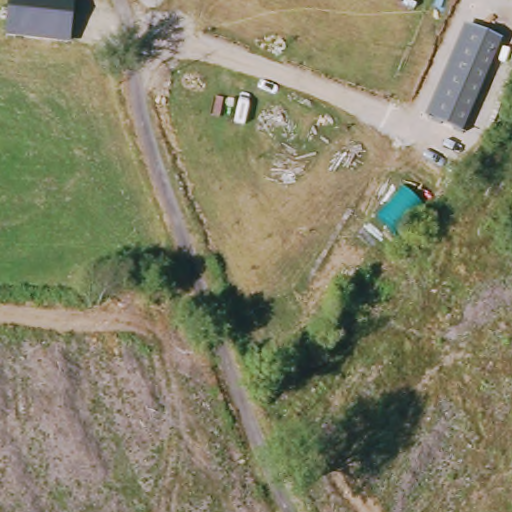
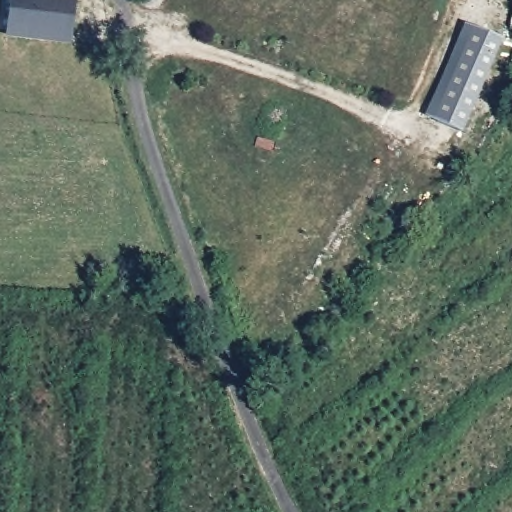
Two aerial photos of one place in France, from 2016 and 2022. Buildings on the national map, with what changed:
unchanged [(0,28),(4,0),(39,0),(83,6),(80,38),(0,28)]
unchanged [(425,114),(464,24),(502,40),(464,132),(425,114)]

